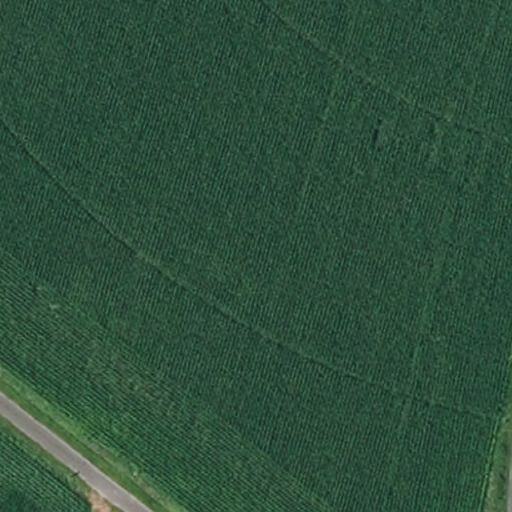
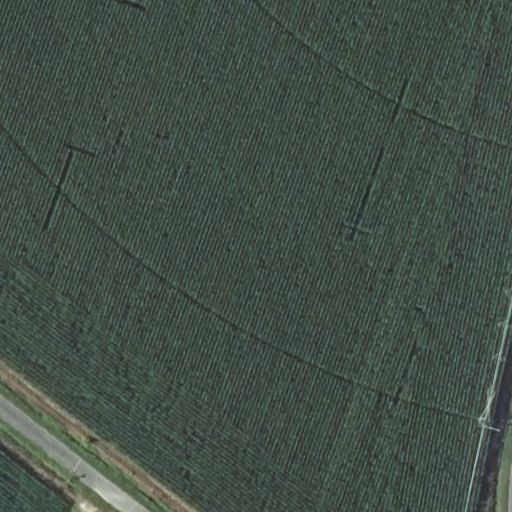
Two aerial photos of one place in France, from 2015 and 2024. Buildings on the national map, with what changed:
[]

